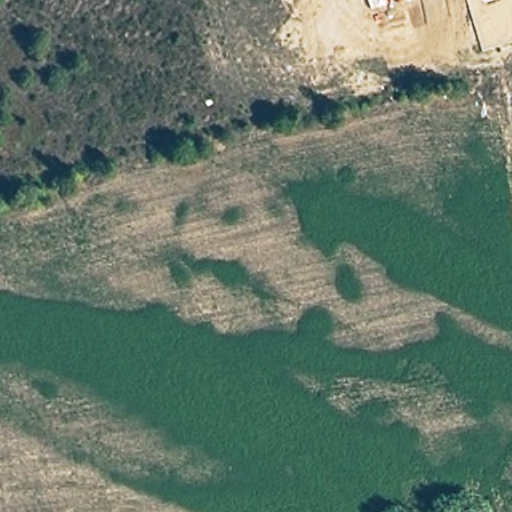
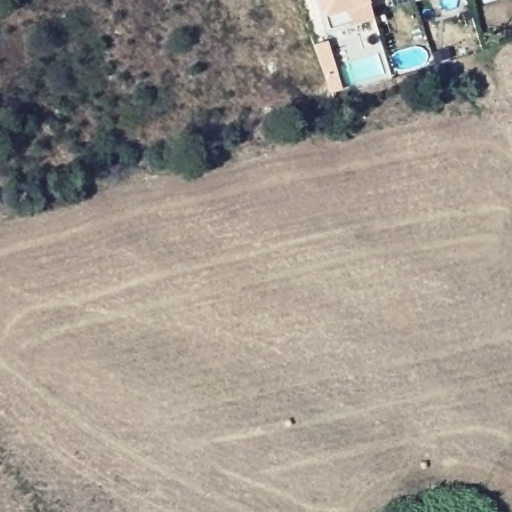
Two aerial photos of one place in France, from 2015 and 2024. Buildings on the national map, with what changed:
new [(323,13),(319,0),(368,0),(372,15),(372,16),(352,22),(328,29),(323,13)]
unchanged [(487,3),(487,0),(497,0),(487,3)]

